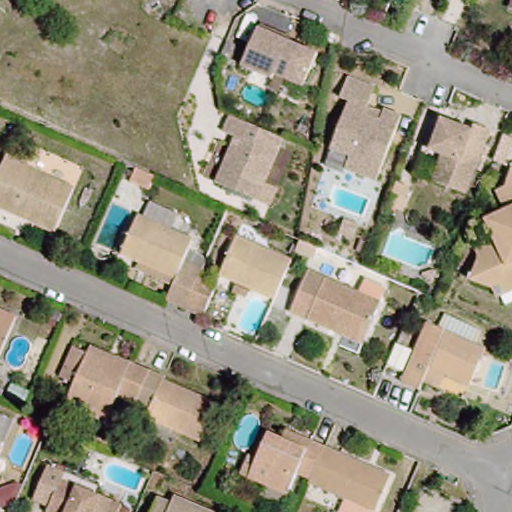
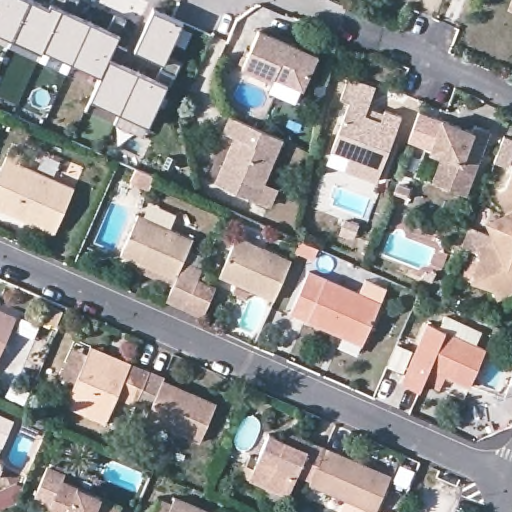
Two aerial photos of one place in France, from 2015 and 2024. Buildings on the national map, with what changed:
new [(51,0),(79,0),(73,13),(90,21),(108,29),(114,15),(126,21),(115,44),(101,76),(71,62),(43,49),(41,52),(12,39),(0,33),(0,0),(32,0),(48,7),(51,0)]
unchanged [(511,10),(512,6),(512,10),(511,10)]
new [(153,9),(172,19),(183,23),(167,57),(181,64),(175,76),(161,69),(163,64),(152,59),(154,54),(136,46),(153,9)]
unchanged [(306,90),(278,77),(276,82),(246,69),(263,30),(321,56),(306,90)]
new [(175,76),(170,87),(167,85),(149,126),(120,112),(90,99),(101,76),(115,44),(127,50),(121,64),(138,72),(156,79),(161,69),(175,76)]
unchanged [(368,107),(385,114),(383,121),(374,142),(389,147),(377,182),(345,170),(350,157),(331,150),(350,102),(341,100),(348,79),(375,89),(368,107)]
unchanged [(270,207),(256,201),(215,183),(231,146),(240,150),(243,142),(223,132),(230,117),(283,141),(265,182),(278,189),(270,207)]
unchanged [(490,130),(466,194),(433,182),(443,156),(431,151),(442,120),(473,131),(475,125),(490,130)]
unchanged [(55,233),(0,209),(0,170),(5,159),(75,189),(55,233)]
unchanged [(155,177),(149,191),(129,182),(136,169),(155,177)]
unchanged [(504,190),(511,187),(512,184),(512,207),(504,190)]
unchanged [(502,296),(499,288),(476,281),(484,258),(481,251),(504,241),(495,221),(512,214),(512,291),(502,296)]
unchanged [(203,316),(186,308),(167,300),(173,287),(135,271),(138,263),(120,255),(138,215),(193,239),(188,251),(206,258),(198,280),(215,287),(203,316)]
new [(356,226),(351,240),(337,234),(343,220),(356,226)]
unchanged [(232,293),(236,285),(218,277),(236,236),(291,260),(274,301),(250,291),(246,300),(232,293)]
unchanged [(319,249),(314,260),(295,252),(300,241),(319,249)]
unchanged [(336,334),(291,313),(308,272),(381,303),(365,342),(363,346),(336,334)]
unchanged [(0,356),(0,311),(16,318),(0,356)]
unchanged [(425,381),(420,392),(401,384),(427,323),(486,350),(471,387),(446,376),(441,387),(425,381)]
unchanged [(136,405),(117,397),(106,424),(65,406),(74,385),(58,377),(72,347),(88,354),(91,346),(115,357),(150,372),(136,405)]
unchanged [(163,378),(162,380),(216,404),(200,442),(145,419),(148,411),(136,405),(150,372),(163,378)]
unchanged [(302,475),(293,496),(253,478),(240,472),(248,451),(251,446),(259,427),(273,434),(287,440),(291,431),(298,434),(330,448),(316,481),(302,475)]
unchanged [(396,477),(381,512),(378,512),(315,484),(316,481),(330,448),(396,477)]
unchanged [(64,474),(61,481),(121,506),(118,512),(47,512),(49,507),(33,500),(47,467),(64,474)]
new [(23,484),(15,503),(1,510),(0,509),(0,487),(16,480),(23,484)]
unchanged [(213,512),(158,512),(163,499),(176,505),(180,498),(213,512)]

